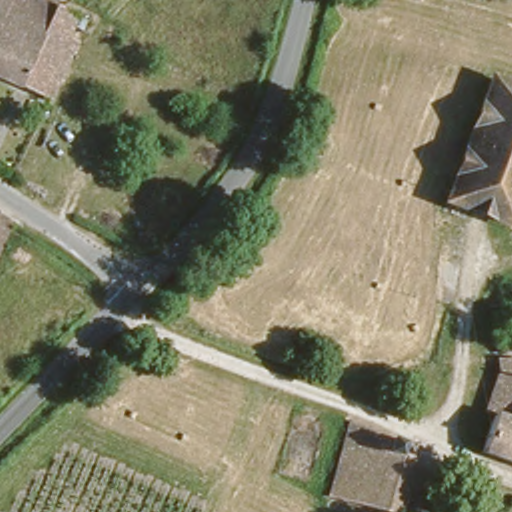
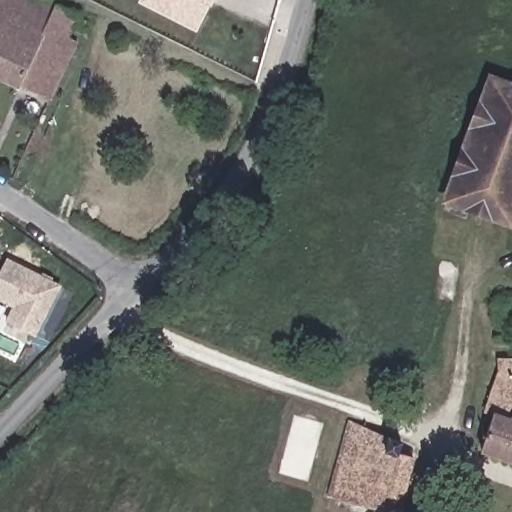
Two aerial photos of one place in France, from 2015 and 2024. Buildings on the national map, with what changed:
unchanged [(78,11),(69,32),(77,37),(49,94),(0,73),(0,0),(55,0),(78,11)]
new [(212,3),(208,2),(196,26),(145,0),(213,0),(212,3)]
unchanged [(512,81),(512,221),(446,197),(491,73),(512,81)]
unchanged [(0,243),(0,211),(11,217),(0,243)]
new [(7,260),(60,286),(36,335),(9,322),(17,307),(0,299),(0,274),(7,260)]
unchanged [(498,360),(512,362),(512,461),(483,451),(494,416),(485,412),(500,368),(498,360)]
unchanged [(378,512),(323,497),(345,420),(398,443),(395,453),(411,457),(396,512),(378,512)]

